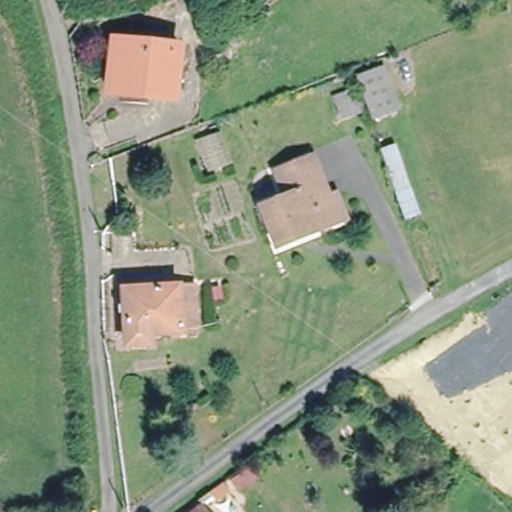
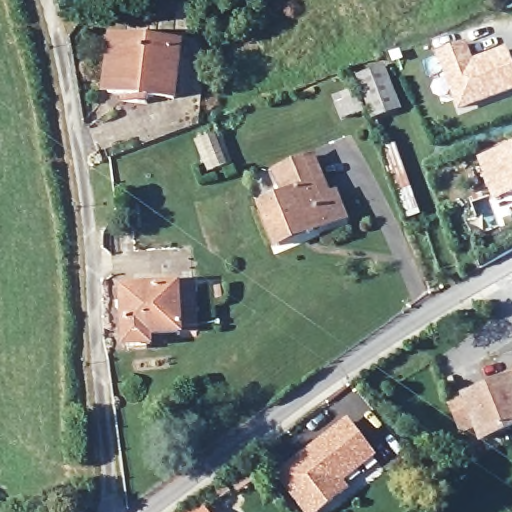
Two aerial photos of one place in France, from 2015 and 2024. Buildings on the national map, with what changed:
unchanged [(175,101),(110,94),(115,41),(181,47),(175,101)]
new [(467,41),(474,61),(509,47),(512,56),(512,92),(460,111),(436,54),(467,41)]
unchanged [(405,107),(378,117),(363,76),(390,66),(405,107)]
unchanged [(364,97),(369,112),(348,120),(342,105),(364,97)]
new [(512,145),(512,196),(495,204),(479,157),(512,145)]
unchanged [(277,237),(263,202),(288,192),(277,167),(313,152),(324,179),(329,190),(336,187),(347,214),(328,221),(310,228),(278,242),(277,237)]
unchanged [(151,345),(127,346),(125,290),(179,287),(197,287),(199,332),(181,333),(151,335),(151,345)]
unchanged [(466,394),(468,399),(512,381),(510,377),(512,376),(512,428),(484,439),(478,425),(464,431),(452,400),(466,394)]
new [(379,455),(346,481),(351,490),(323,512),(304,512),(277,474),(349,418),(379,455)]
unchanged [(198,509),(200,512),(194,512),(198,509)]

